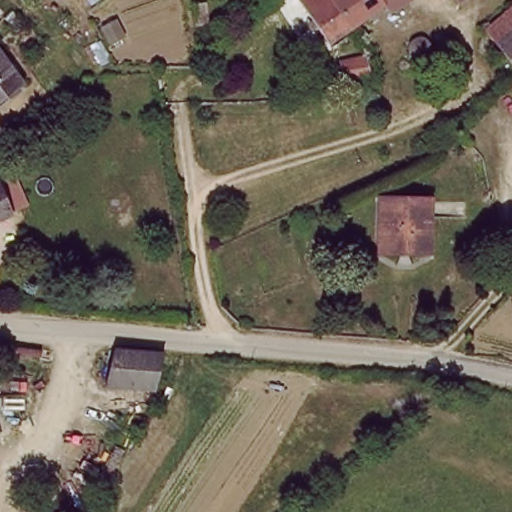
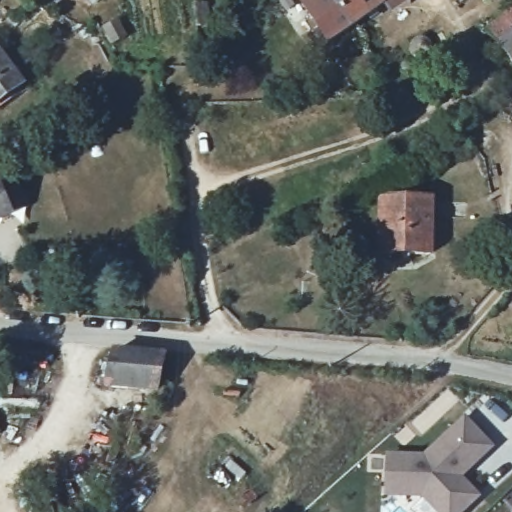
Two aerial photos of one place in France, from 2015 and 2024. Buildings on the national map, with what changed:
unchanged [(335,39),(307,0),(344,0),(346,2),(355,15),(360,22),(335,39)]
unchanged [(365,19),(360,22),(355,15),(346,2),(344,0),(392,0),(365,19)]
unchanged [(208,2),(210,22),(198,23),(197,5),(196,2),(208,2)]
unchanged [(503,42),(492,29),(512,11),(512,53),(503,42)]
unchanged [(431,39),(432,41),(432,42),(433,44),(433,45),(433,46),(433,47),(432,50),(431,52),(428,55),(426,56),(424,57),(423,57),(421,57),(419,56),(417,56),(415,54),(413,52),(411,50),(411,48),(410,45),(411,44),(411,42),(412,40),(413,37),(415,36),(416,36),(418,35),(421,34),(424,35),(426,35),(427,36),(429,37),(431,39)]
unchanged [(0,104),(0,51),(25,85),(0,104)]
unchanged [(368,59),(372,75),(341,76),(341,57),(368,56),(368,59)]
unchanged [(0,186),(6,200),(11,210),(0,215),(0,186)]
unchanged [(433,200),(432,254),(411,254),(411,246),(382,246),(383,199),(433,200)]
unchanged [(168,354),(162,391),(110,388),(118,352),(168,354)]
new [(465,417),(496,448),(464,480),(482,497),(466,512),(435,512),(422,498),(384,497),(387,452),(427,452),(465,417)]

